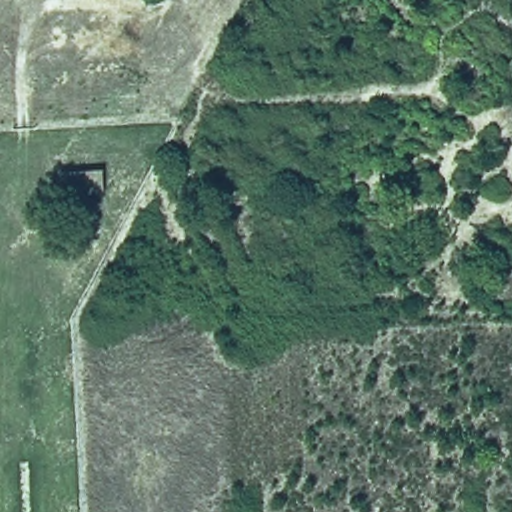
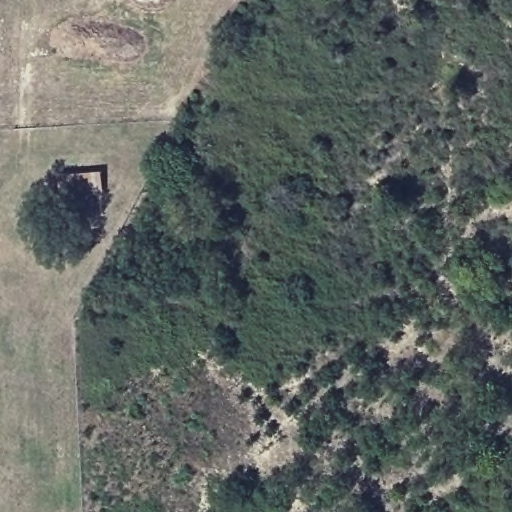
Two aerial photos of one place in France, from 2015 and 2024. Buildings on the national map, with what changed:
unchanged [(100,170),(102,193),(58,196),(56,172),(100,170)]

